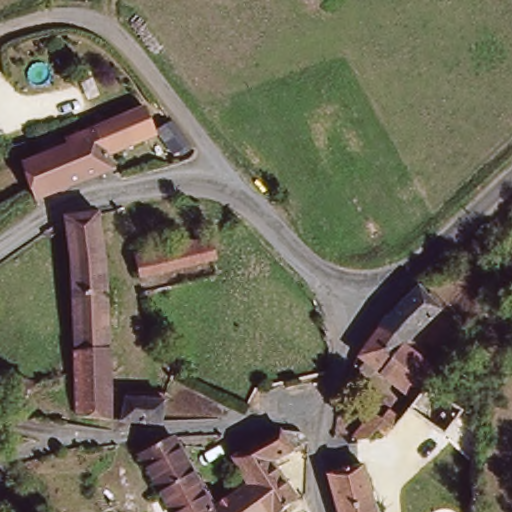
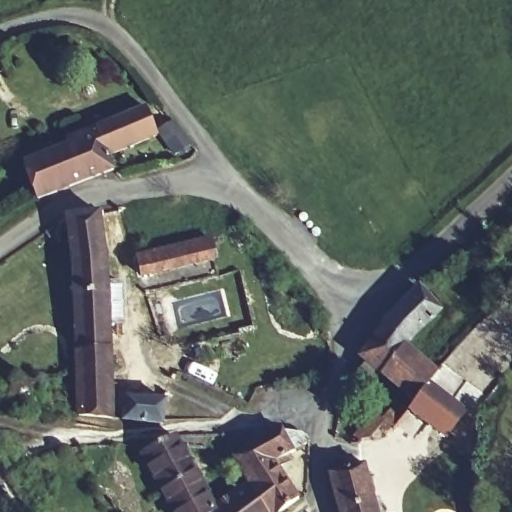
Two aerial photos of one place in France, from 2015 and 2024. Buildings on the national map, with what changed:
unchanged [(63,138),(141,105),(152,132),(102,155),(108,168),(34,198),(20,161),(65,144),(63,138)]
unchanged [(188,142),(171,153),(153,126),(168,117),(188,142)]
unchanged [(77,413),(73,314),(65,226),(45,237),(41,230),(61,216),(96,210),(107,278),(110,417),(77,413)]
unchanged [(207,238),(211,258),(139,274),(135,254),(207,238)]
unchanged [(432,369),(436,372),(427,382),(413,400),(354,356),(387,311),(414,285),(439,308),(408,350),(432,369)]
unchanged [(34,376),(30,386),(25,399),(8,391),(18,370),(34,376)]
new [(433,382),(466,409),(447,435),(410,409),(414,403),(433,382)]
unchanged [(125,385),(163,389),(161,418),(121,414),(125,385)]
unchanged [(387,408),(398,416),(384,433),(373,427),(366,438),(349,438),(369,412),(379,417),(387,408)]
unchanged [(276,461),(299,499),(281,512),(269,512),(250,481),(235,455),(238,454),(281,429),(306,432),(311,441),(276,461)]
unchanged [(163,490),(142,452),(173,435),(194,472),(163,490)]
unchanged [(364,465),(378,512),(340,512),(329,476),(364,465)]
unchanged [(269,512),(175,512),(163,490),(194,472),(213,506),(250,481),(269,512)]

